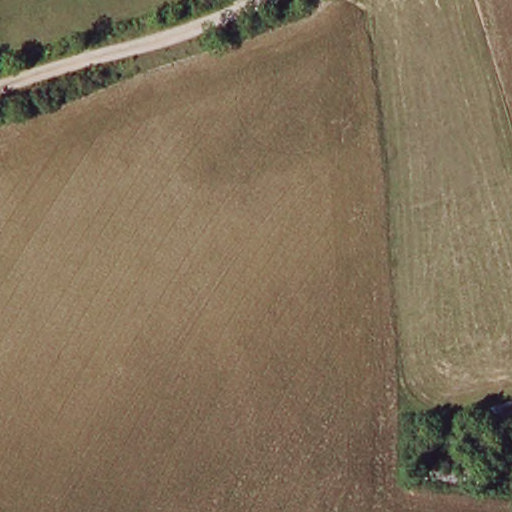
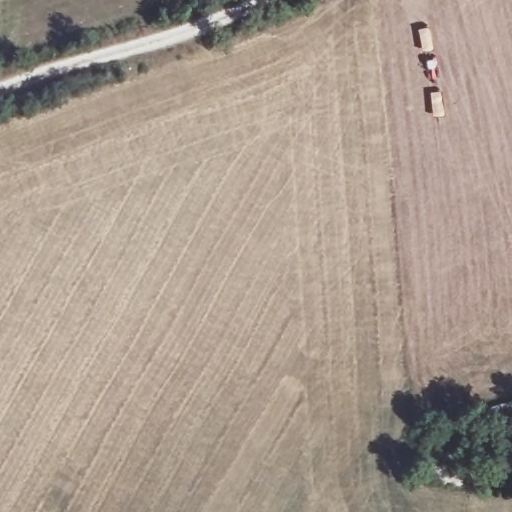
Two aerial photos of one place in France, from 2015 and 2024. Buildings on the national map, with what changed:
unchanged [(469,419),(477,460),(459,464),(448,422),(469,419)]
unchanged [(417,483),(418,465),(456,473),(455,491),(417,483)]

